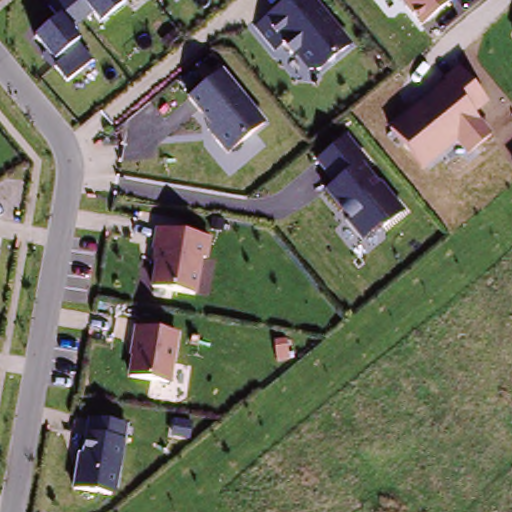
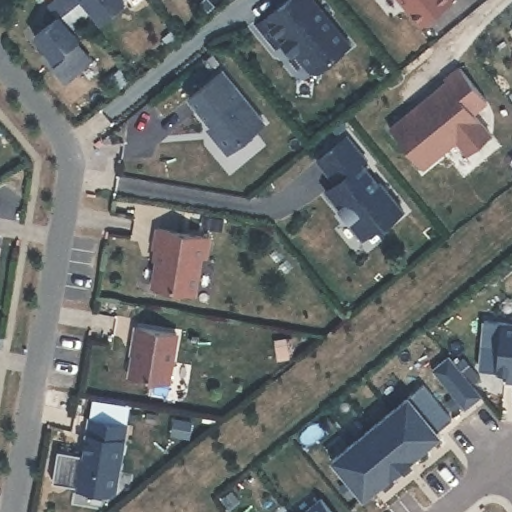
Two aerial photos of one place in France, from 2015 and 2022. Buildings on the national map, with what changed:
unchanged [(126,3),(101,22),(94,13),(71,31),(78,40),(94,59),(66,83),(50,64),(55,59),(36,35),(58,16),(49,6),(56,0),(124,0),(126,3)]
unchanged [(353,44),(320,72),(310,70),(300,56),(295,59),(281,40),(278,43),(261,21),(286,0),(315,0),(353,44)]
unchanged [(418,28),(395,0),(452,0),(418,28)]
unchanged [(488,100),(473,111),(492,134),(467,154),(456,140),(425,166),(391,125),(461,67),(488,100)]
unchanged [(266,120),(229,152),(208,127),(211,125),(189,97),(224,68),(266,120)]
unchanged [(369,159),(365,162),(405,211),(383,232),(379,228),(365,239),(327,191),(336,183),(317,159),(349,132),(369,159)]
unchanged [(212,234),(209,257),(203,257),(198,294),(151,288),(156,260),(151,260),(156,225),(212,234)]
unchanged [(180,331),(172,382),(127,376),(136,322),(180,331)]
new [(512,323),(512,373),(499,372),(504,322),(512,323)]
new [(447,355),(483,399),(468,412),(431,367),(447,355)]
new [(412,396),(444,435),(424,451),(392,412),(412,396)]
new [(392,412),(424,451),(405,467),(373,428),(392,412)]
unchanged [(78,454),(82,454),(88,417),(128,425),(117,496),(72,488),(78,454)]
new [(373,428),(405,467),(386,482),(354,444),(373,428)]
new [(354,444),(386,482),(366,498),(334,460),(354,444)]
new [(335,512),(307,512),(324,498),(335,512)]

